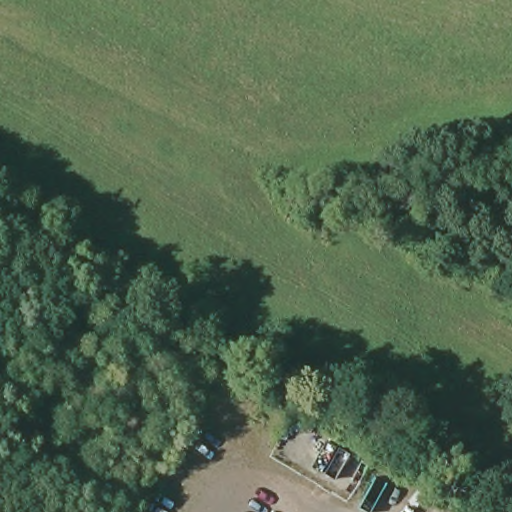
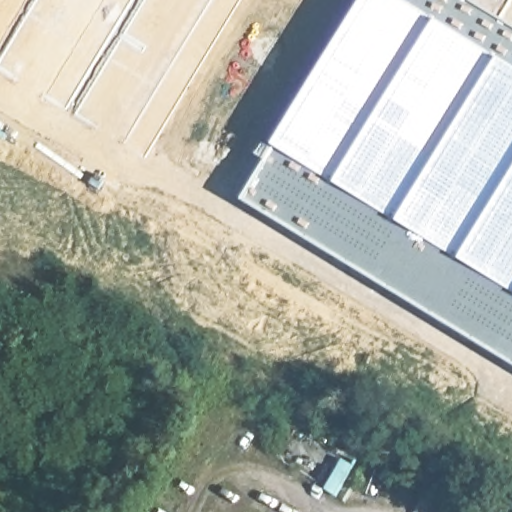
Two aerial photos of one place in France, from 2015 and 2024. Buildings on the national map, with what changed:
new [(247,207),(369,0),(457,0),(512,33),(512,366),(247,207)]

